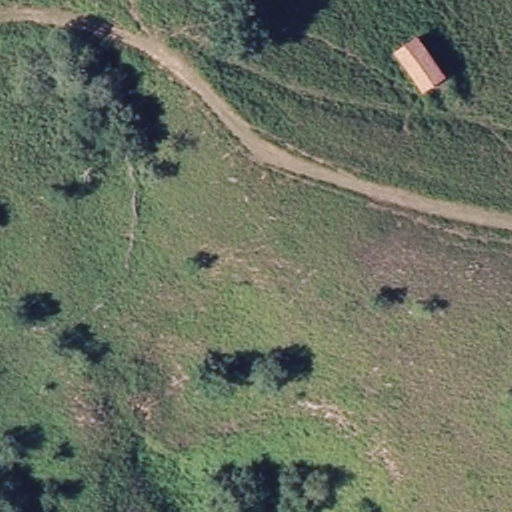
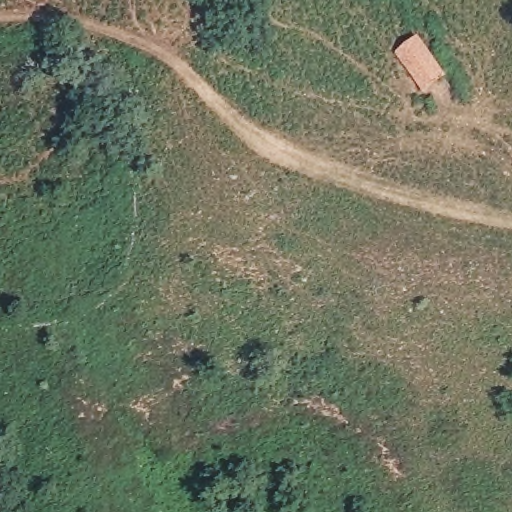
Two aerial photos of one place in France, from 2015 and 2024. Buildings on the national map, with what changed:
unchanged [(423,91),(399,55),(419,42),(445,76),(423,91)]

